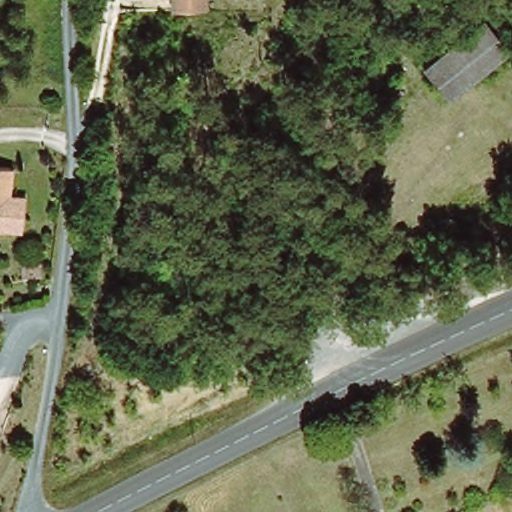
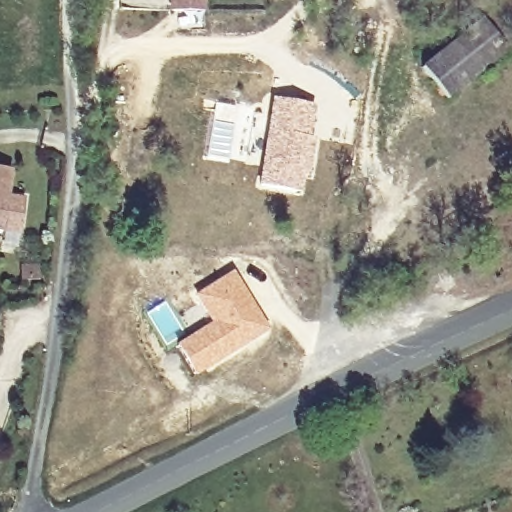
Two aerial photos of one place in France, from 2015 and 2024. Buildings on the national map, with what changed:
unchanged [(175,11),(174,0),(206,0),(207,10),(184,10),(175,11)]
unchanged [(425,71),(485,19),(510,46),(450,99),(425,71)]
new [(271,96),(317,104),(312,137),(318,138),(312,179),(305,178),(302,194),(257,186),(271,96)]
unchanged [(0,229),(0,166),(11,166),(7,229),(0,229)]
new [(210,321),(194,293),(233,269),(268,330),(195,376),(175,344),(210,321)]

